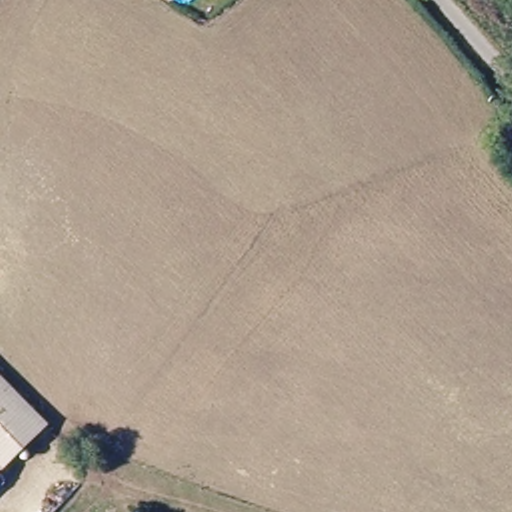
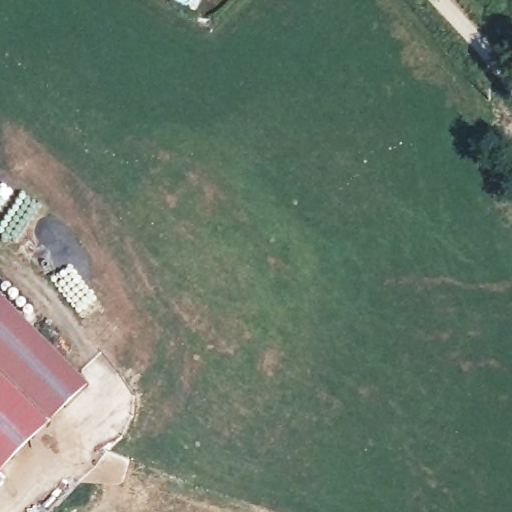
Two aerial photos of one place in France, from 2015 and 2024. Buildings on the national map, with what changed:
new [(0,474),(0,295),(89,388),(0,474)]
demolished [(8,455),(0,458),(0,380),(41,418),(8,455)]

